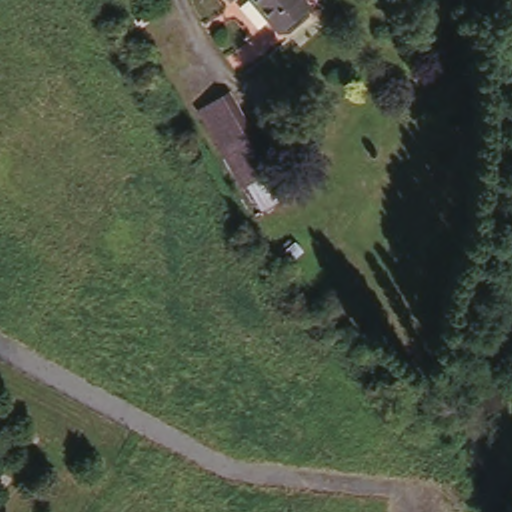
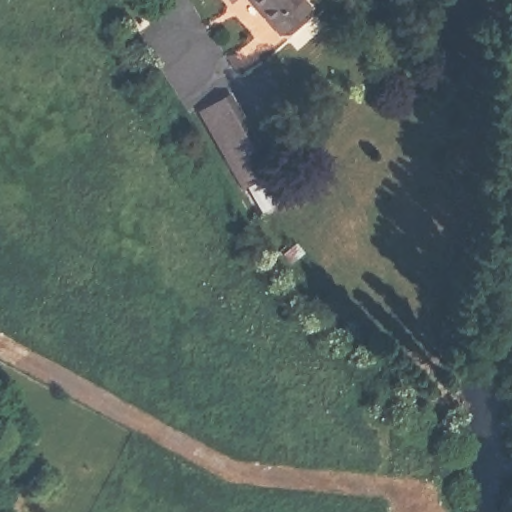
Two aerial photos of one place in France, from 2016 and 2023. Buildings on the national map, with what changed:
unchanged [(211,0),(244,0),(223,15),(211,0)]
unchanged [(282,41),(244,0),(299,0),(312,15),(282,41)]
unchanged [(237,171),(199,110),(230,91),(267,152),(237,171)]
unchanged [(291,191),(261,210),(237,171),(267,152),(291,191)]

